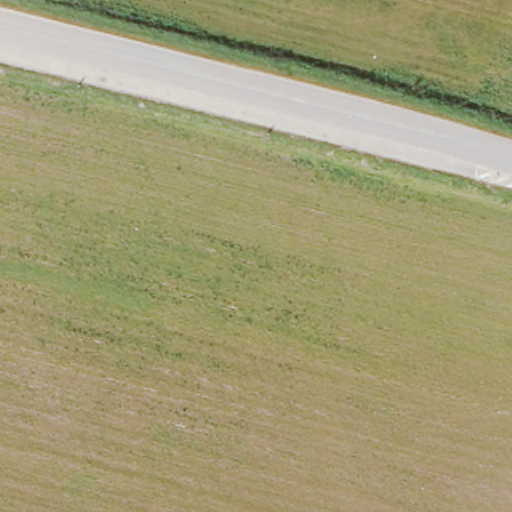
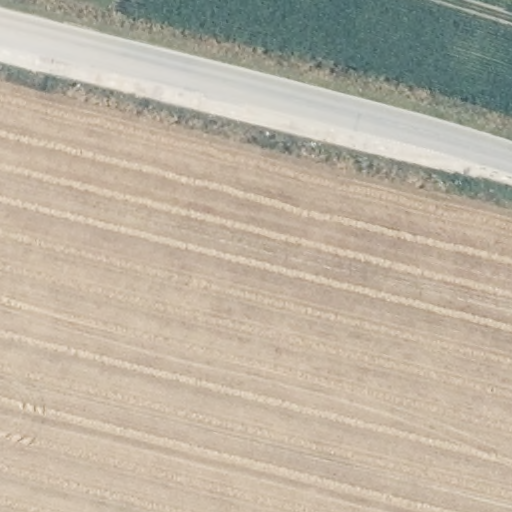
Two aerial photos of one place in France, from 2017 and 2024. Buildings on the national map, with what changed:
[]

